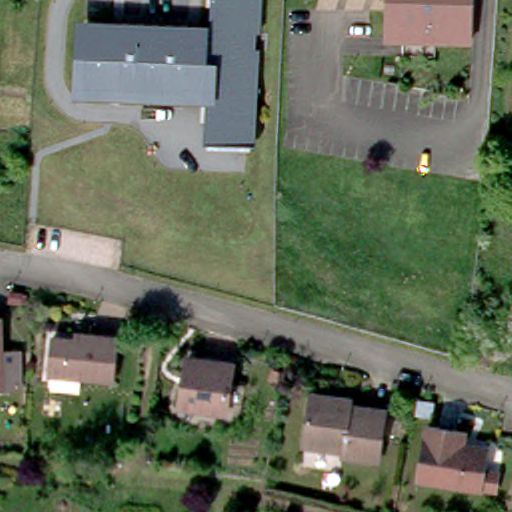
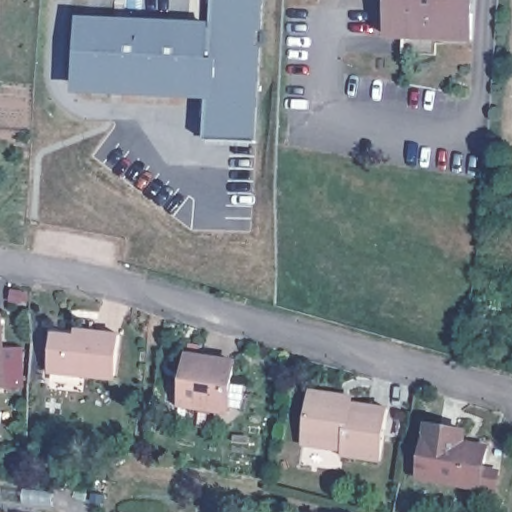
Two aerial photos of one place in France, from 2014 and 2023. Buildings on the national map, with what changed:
unchanged [(207,138),(210,97),(80,90),(85,17),(213,21),(214,0),(265,0),(261,142),(207,138)]
unchanged [(402,34),(387,33),(387,21),(388,0),(472,0),(471,25),(470,36),(435,35),(435,51),(402,50),(402,34)]
unchanged [(2,313),(2,381),(0,382),(0,313),(2,313)]
unchanged [(113,377),(50,368),(55,331),(77,333),(78,327),(90,329),(119,333),(113,377)]
unchanged [(235,358),(227,406),(182,400),(189,351),(235,358)]
unchanged [(350,392),(350,398),(385,405),(377,455),(340,450),(341,445),(302,439),(306,409),(310,387),(316,388),(339,391),(350,392)]
unchanged [(462,427),(460,440),(485,445),(479,485),(417,474),(427,421),(462,427)]
unchanged [(483,466),(504,466),(500,490),(482,487),(483,466)]

